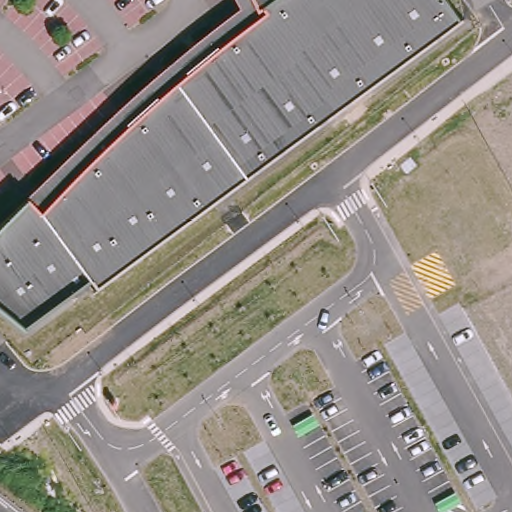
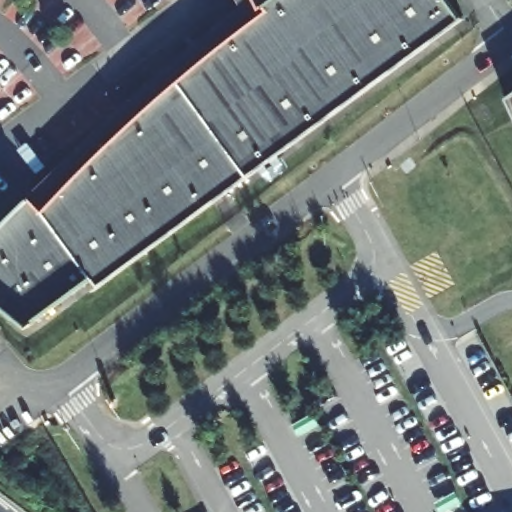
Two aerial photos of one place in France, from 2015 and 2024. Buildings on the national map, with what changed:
unchanged [(173,240),(98,295),(92,287),(27,336),(0,316),(0,225),(20,209),(48,189),(61,203),(71,185),(76,179),(93,159),(105,144),(119,129),(142,106),(167,84),(178,75),(221,46),(238,35),(271,19),(268,15),(263,18),(252,0),(442,0),(460,24),(173,240)]

